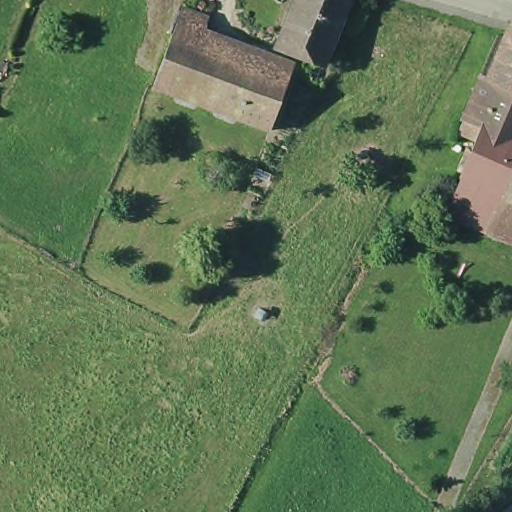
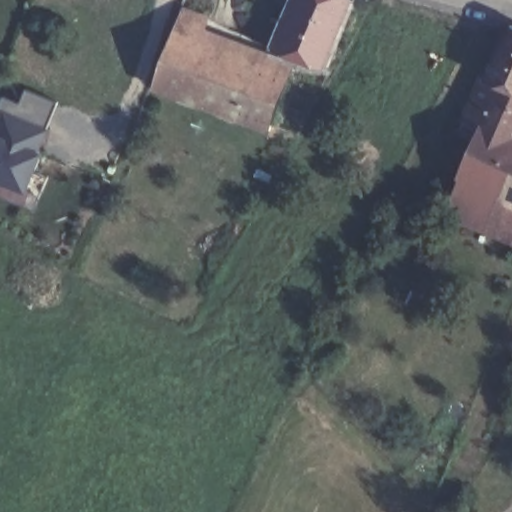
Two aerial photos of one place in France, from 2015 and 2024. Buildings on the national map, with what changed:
unchanged [(348,0),(350,0),(325,65),(280,48),(300,0),(348,0)]
unchanged [(186,9),(212,18),(203,42),(295,75),(281,109),(272,130),(153,86),(178,33),(186,9)]
unchanged [(512,30),(512,93),(490,84),(512,30)]
unchanged [(472,107),(484,82),(490,84),(512,93),(512,203),(508,201),(465,181),(485,135),(465,126),(472,107)]
new [(58,101),(25,192),(0,183),(0,100),(2,94),(20,101),(25,87),(58,101)]
unchanged [(450,216),(465,181),(508,201),(493,236),(450,216)]
unchanged [(508,201),(512,203),(512,244),(493,236),(508,201)]

